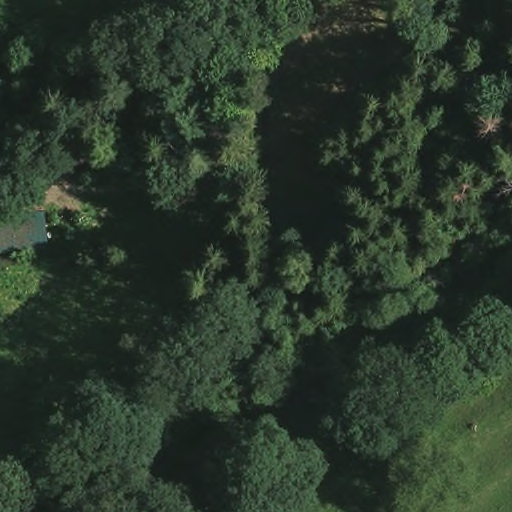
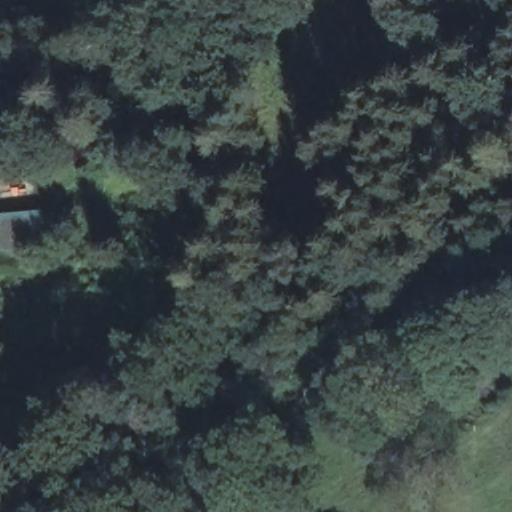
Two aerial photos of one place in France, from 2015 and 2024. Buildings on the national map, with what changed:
unchanged [(37,218),(41,249),(0,253),(0,221),(37,218)]

